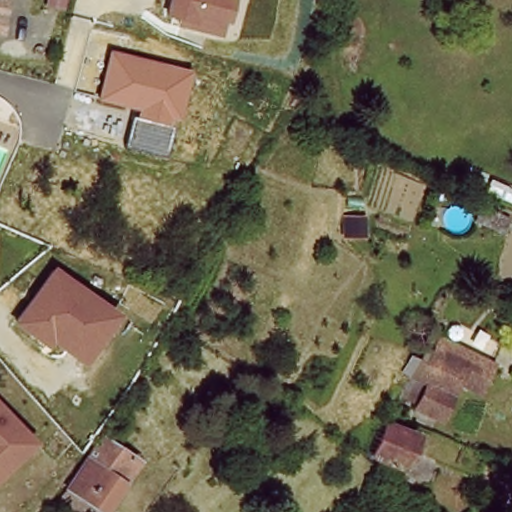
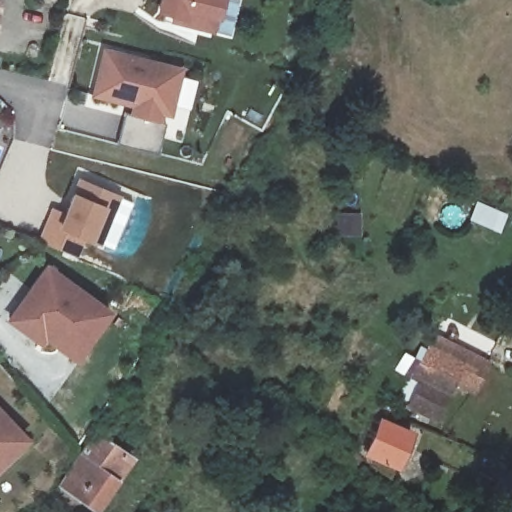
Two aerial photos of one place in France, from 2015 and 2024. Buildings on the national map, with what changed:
unchanged [(0,16),(0,0),(3,0),(0,16)]
unchanged [(219,21),(215,35),(171,25),(173,15),(159,12),(162,0),(224,0),(219,21)]
new [(235,38),(217,34),(221,19),(223,20),(228,1),(242,4),(235,38)]
unchanged [(183,67),(173,117),(166,115),(156,153),(117,144),(125,114),(128,115),(131,106),(90,97),(104,48),(183,67)]
new [(101,245),(85,239),(78,257),(38,241),(50,212),(61,216),(72,192),(78,178),(120,195),(101,245)]
unchanged [(45,340),(41,347),(6,321),(48,264),(114,311),(78,363),(45,340)]
unchanged [(480,408),(445,392),(427,428),(403,417),(422,376),(412,372),(431,329),(489,356),(481,372),(494,378),(480,408)]
unchanged [(0,469),(0,408),(30,441),(0,469)]
unchanged [(394,478),(366,463),(366,448),(356,441),(376,414),(405,432),(390,454),(400,461),(394,478)]
unchanged [(96,431),(133,457),(97,512),(95,512),(58,486),(96,431)]

